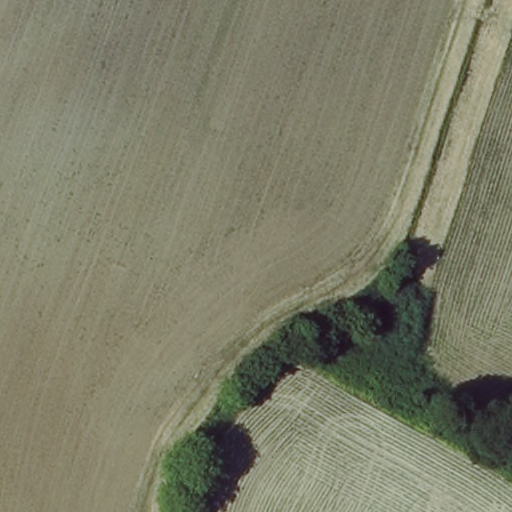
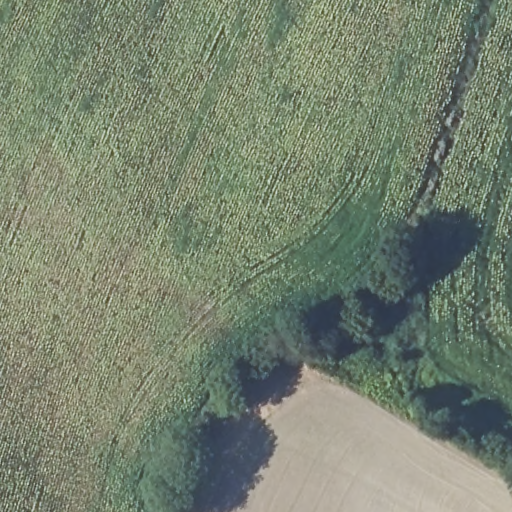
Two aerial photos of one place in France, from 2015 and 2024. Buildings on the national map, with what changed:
[]

